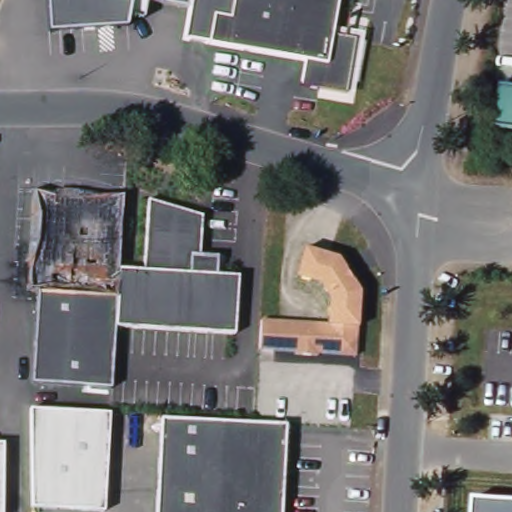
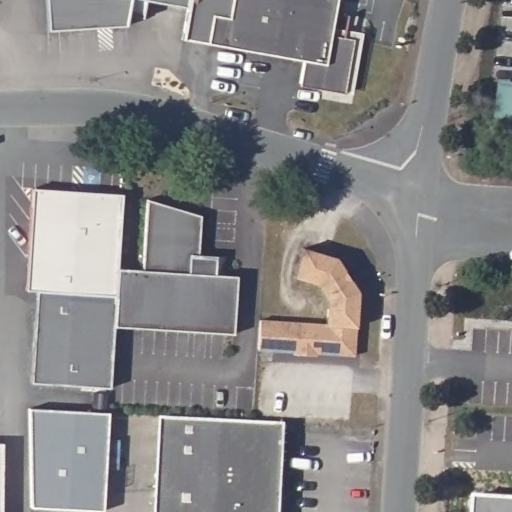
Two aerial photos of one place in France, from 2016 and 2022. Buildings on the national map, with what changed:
unchanged [(229,18),(213,15),(208,45),(181,43),(187,9),(144,3),(141,21),(125,21),(123,28),(49,32),(46,0),(233,0),(229,18)]
unchanged [(213,15),(229,18),(233,0),(339,0),(333,37),(355,40),(346,95),(300,87),(304,62),(208,45),(213,15)]
unchanged [(494,82),(512,84),(512,126),(489,123),(494,82)]
unchanged [(29,190),(120,195),(116,271),(145,273),(147,201),(200,217),(199,254),(217,256),(216,277),(238,277),(234,335),(113,328),(114,296),(35,291),(24,291),(29,190)]
unchanged [(340,261),(361,298),(358,328),(354,355),(259,348),(262,318),(327,319),(327,300),(317,283),(296,278),(303,248),(340,261)]
unchanged [(35,291),(114,296),(113,328),(110,389),(29,384),(35,291)]
unchanged [(103,512),(65,512),(27,509),(25,410),(108,413),(103,512)]
unchanged [(284,426),(278,512),(154,512),(157,419),(284,426)]
unchanged [(4,512),(0,512),(0,442),(4,442),(4,512)]
unchanged [(512,500),(512,512),(473,512),(474,497),(512,500)]

